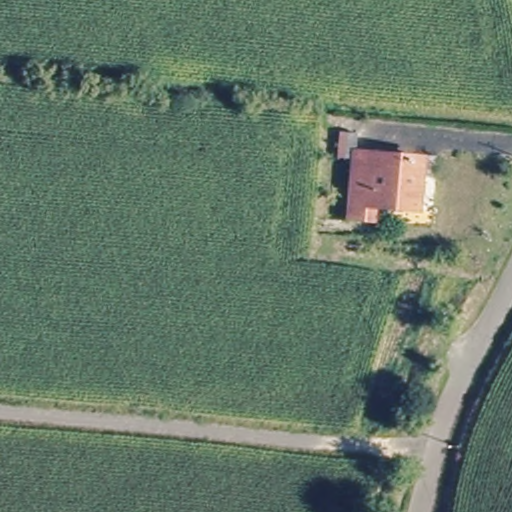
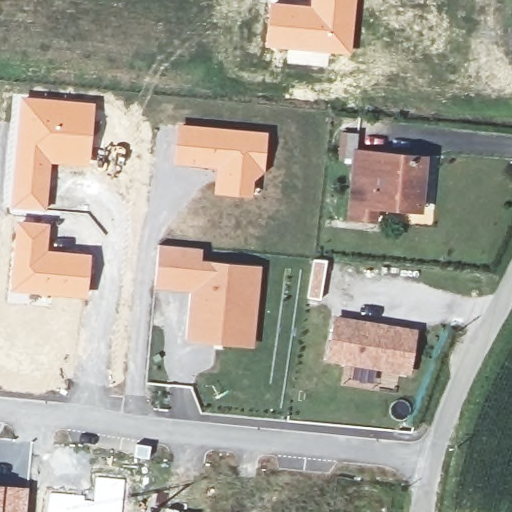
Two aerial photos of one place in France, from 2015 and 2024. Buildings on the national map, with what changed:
new [(268,1),(309,4),(310,0),(357,0),(352,55),(328,53),(327,66),(286,63),(287,50),(264,47),(268,1)]
new [(18,95),(96,102),(88,166),(52,163),(47,210),(10,206),(18,95)]
new [(176,123),(267,131),(262,173),(262,175),(255,178),(252,197),(213,193),(215,169),(172,164),(176,123)]
unchanged [(356,226),(363,157),(432,164),(426,214),(382,210),(381,228),(356,226)]
new [(16,220),(51,223),(49,248),(92,253),(86,299),(9,292),(16,220)]
new [(186,341),(191,292),(154,288),(159,245),(202,249),(201,259),(260,265),(252,347),(186,341)]
new [(326,361),(333,316),(416,328),(409,373),(326,361)]
new [(47,512),(48,492),(84,496),(84,500),(94,502),(96,477),(125,479),(122,512),(47,512)]
new [(29,486),(27,512),(0,512),(0,483),(29,486)]

